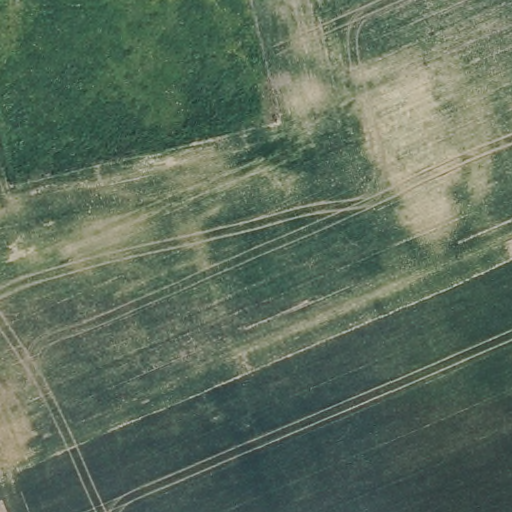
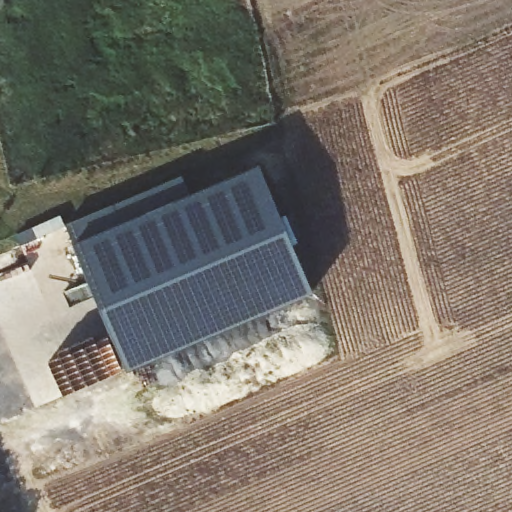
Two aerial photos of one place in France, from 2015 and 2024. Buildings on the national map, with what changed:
new [(66,225),(183,176),(190,194),(260,165),(313,290),(127,369),(66,225)]

